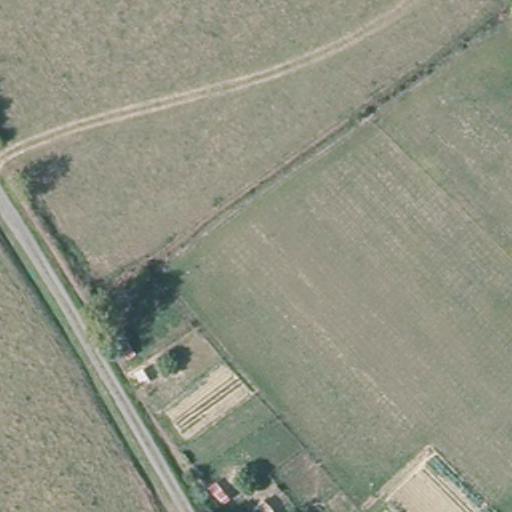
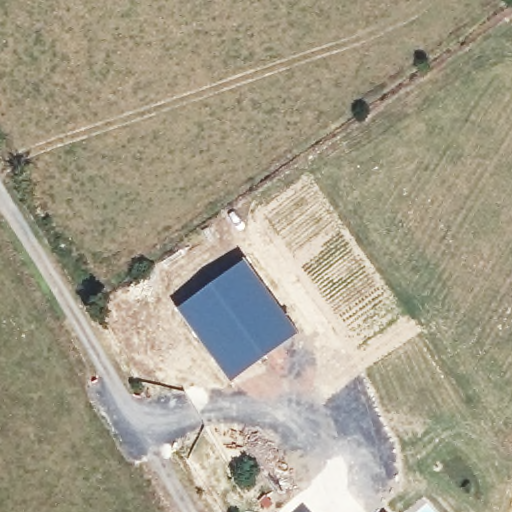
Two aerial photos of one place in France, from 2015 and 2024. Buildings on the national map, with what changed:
new [(245,258),(299,333),(231,383),(177,308),(245,258)]

